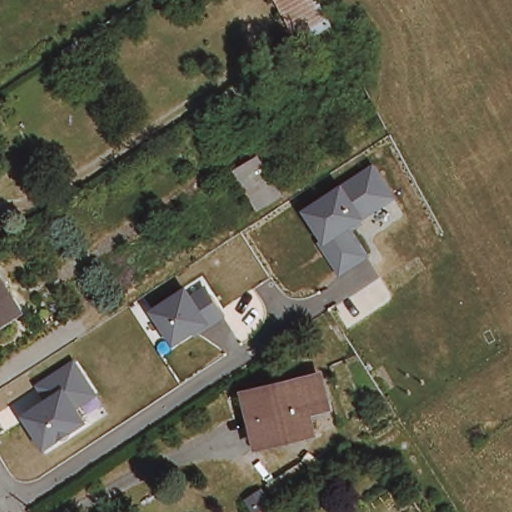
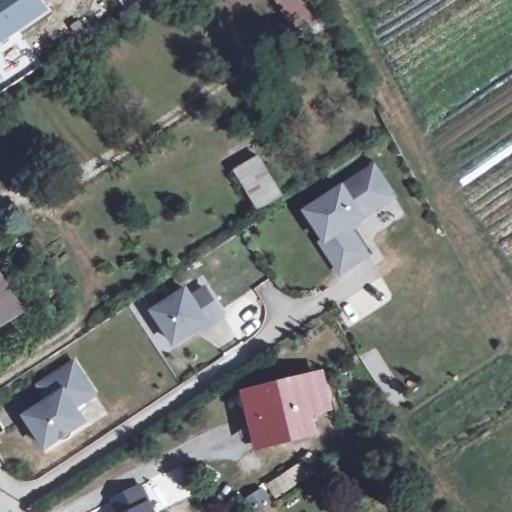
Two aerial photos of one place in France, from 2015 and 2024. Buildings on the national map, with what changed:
new [(51,10),(0,44),(0,0),(44,0),(51,10)]
unchanged [(335,25),(304,45),(280,0),(322,0),(335,25)]
unchanged [(291,196),(262,211),(233,172),(264,157),(291,196)]
unchanged [(398,198),(355,229),(372,256),(340,277),(317,241),(320,239),(301,209),(376,164),(398,198)]
unchanged [(22,310),(0,324),(0,274),(22,310)]
unchanged [(193,340),(191,336),(174,348),(149,311),(189,286),(193,292),(206,284),(228,319),(193,340)]
unchanged [(81,409),(88,422),(44,451),(20,415),(44,398),(34,383),(75,358),(100,396),(81,409)]
unchanged [(302,411),(307,433),(253,447),(240,395),(315,377),(323,405),(302,411)]
new [(141,481),(157,512),(99,512),(98,508),(141,481)]
unchanged [(245,497),(261,487),(269,500),(276,512),(253,512),(252,511),(245,497)]

